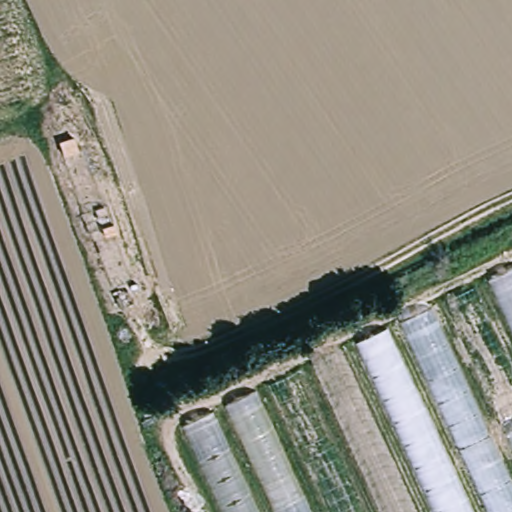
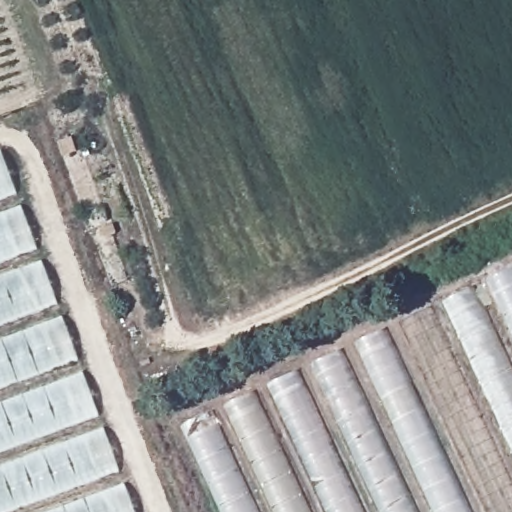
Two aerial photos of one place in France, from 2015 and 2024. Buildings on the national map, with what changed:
new [(17,197),(0,204),(0,156),(2,155),(17,197)]
new [(21,209),(37,253),(0,267),(0,217),(21,209)]
new [(58,308),(0,330),(0,280),(42,265),(58,308)]
unchanged [(512,269),(512,512),(219,512),(182,429),(512,269)]
new [(63,320),(78,364),(0,393),(0,344),(63,320)]
new [(100,422),(0,459),(0,408),(85,377),(100,422)]
new [(0,512),(0,472),(105,433),(120,475),(22,512),(0,512)]
new [(135,512),(62,512),(126,488),(135,512)]

